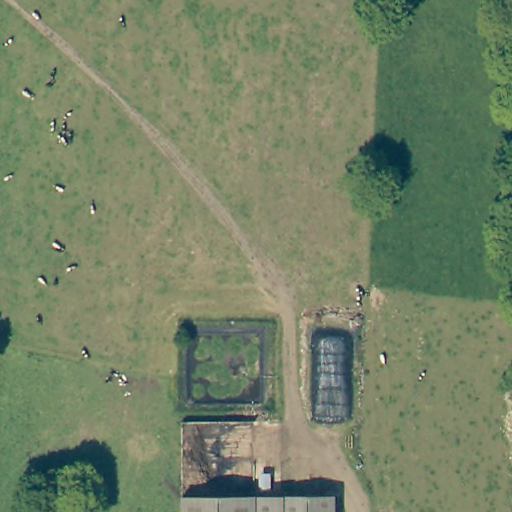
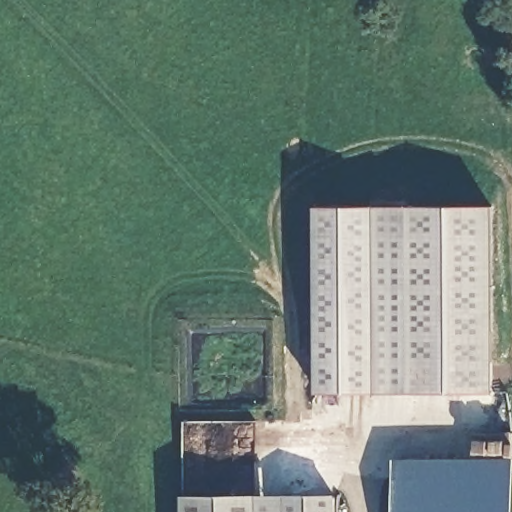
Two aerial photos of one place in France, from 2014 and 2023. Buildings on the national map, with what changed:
new [(316,207),(492,207),(492,392),(316,392),(316,207)]
new [(512,512),(393,512),(393,459),(512,458),(512,512)]
unchanged [(331,497),(332,512),(182,512),(182,498),(331,497)]

